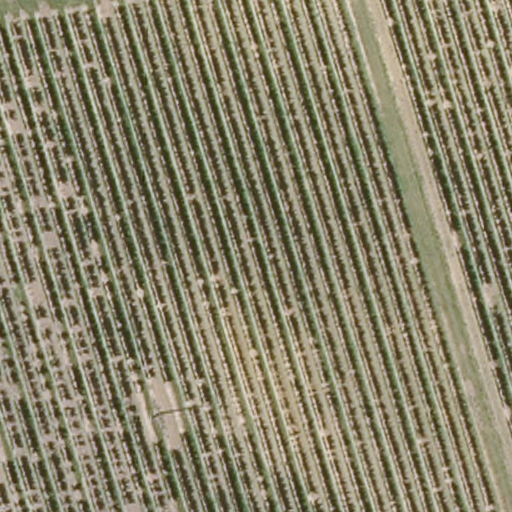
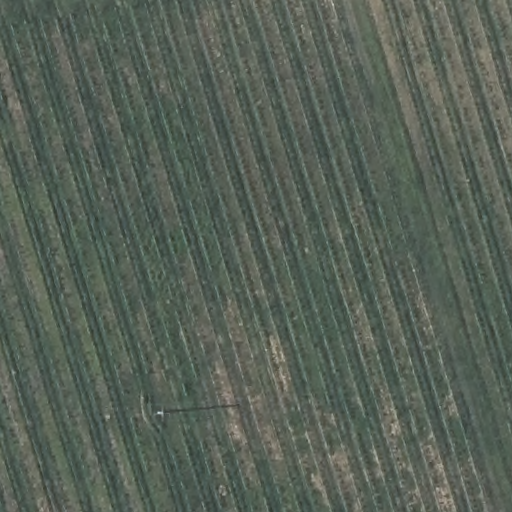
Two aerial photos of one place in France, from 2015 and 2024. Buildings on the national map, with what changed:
[]

